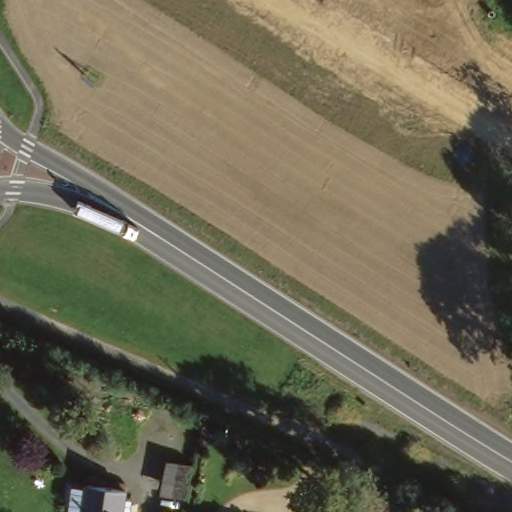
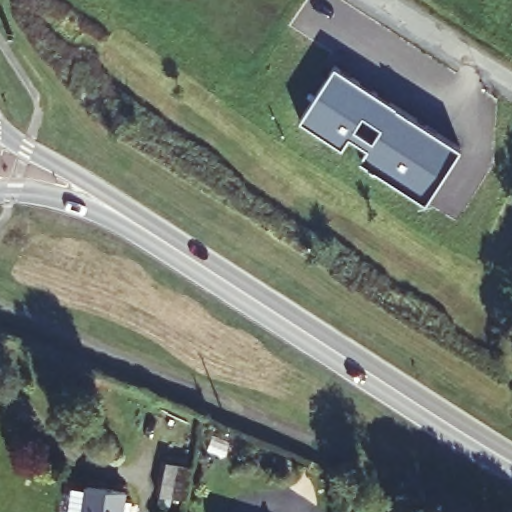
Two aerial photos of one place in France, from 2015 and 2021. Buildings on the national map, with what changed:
new [(462,145),(424,201),(360,158),(366,148),(348,137),(342,147),(300,118),(335,64),(462,145)]
unchanged [(165,496),(172,471),(190,473),(186,501),(165,496)]
unchanged [(83,493),(98,494),(100,487),(127,489),(124,512),(81,512),(83,493)]

